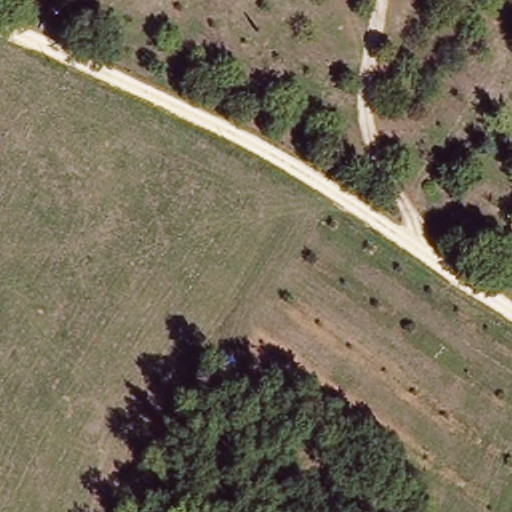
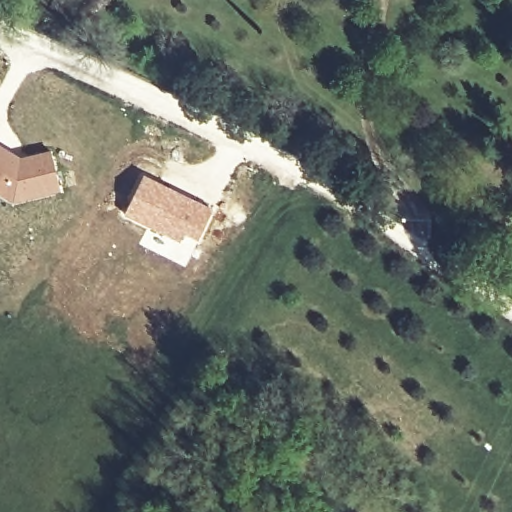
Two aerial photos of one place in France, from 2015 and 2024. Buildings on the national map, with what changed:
new [(20,156),(50,149),(60,192),(12,205),(0,197),(0,142),(20,156)]
new [(143,173),(212,208),(196,240),(185,234),(180,242),(122,213),(143,173)]

